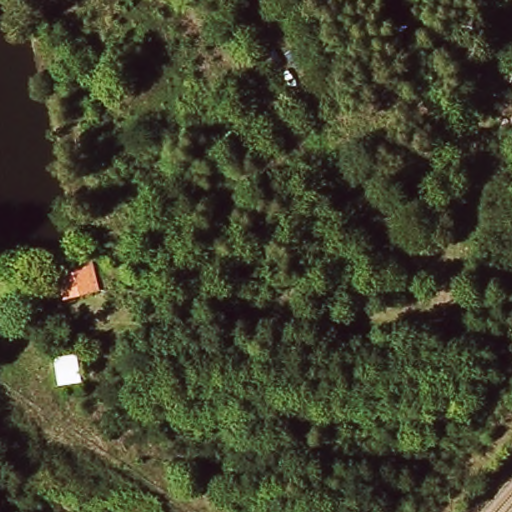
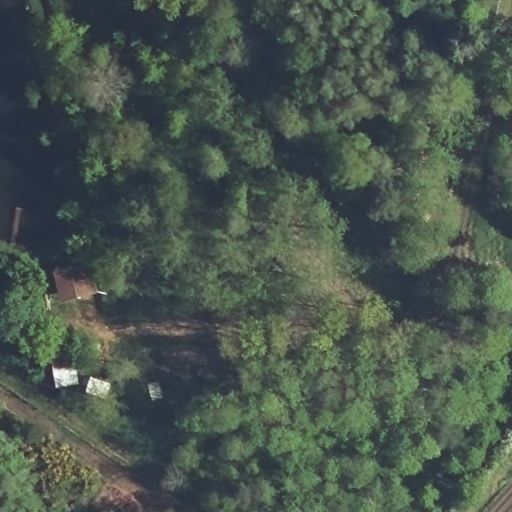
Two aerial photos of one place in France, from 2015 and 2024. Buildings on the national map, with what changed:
unchanged [(98,287),(63,296),(54,268),(90,260),(98,287)]
unchanged [(75,350),(81,384),(56,389),(50,355),(75,350)]

